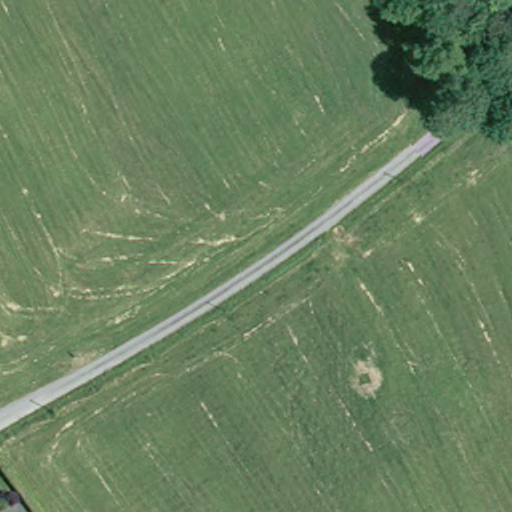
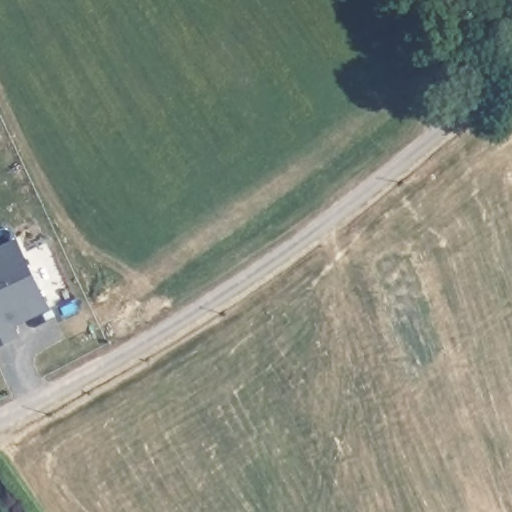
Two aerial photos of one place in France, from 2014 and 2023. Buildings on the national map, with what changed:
new [(18,340),(0,349),(0,253),(18,245),(47,308),(49,312),(13,329),(18,340)]

